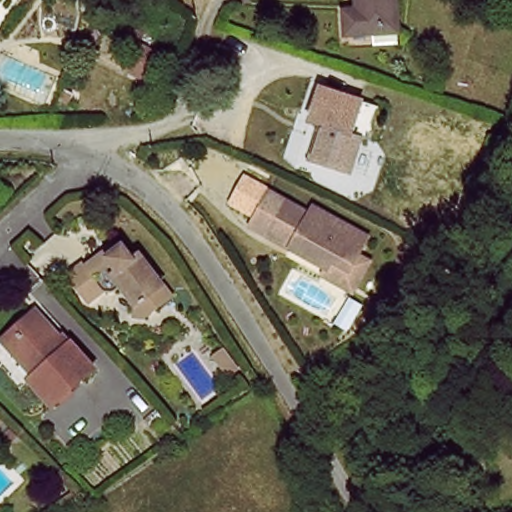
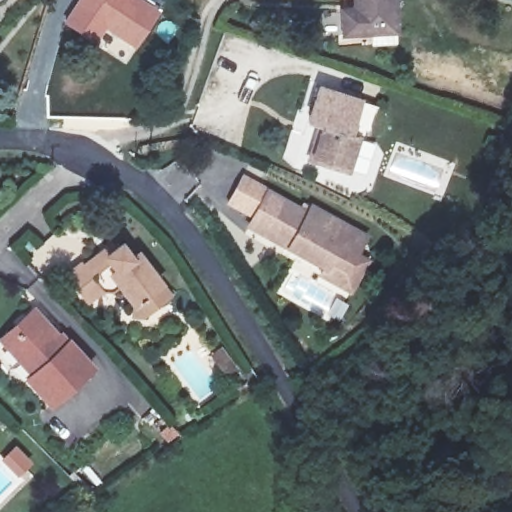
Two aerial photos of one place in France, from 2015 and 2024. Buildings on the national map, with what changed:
unchanged [(0,1),(0,0),(1,0),(0,1)]
new [(77,0),(145,0),(161,10),(136,49),(106,31),(95,46),(62,22),(77,0)]
unchanged [(407,33),(357,42),(352,19),(366,14),(363,0),(400,0),(407,33)]
unchanged [(360,112),(350,141),(359,142),(345,179),(306,165),(316,135),(300,129),(313,95),(360,112)]
new [(254,217),(228,202),(245,175),(272,191),(271,192),(270,192),(254,217)]
unchanged [(353,294),(324,276),(327,271),(292,249),(254,226),(257,220),(274,192),(312,215),(316,208),(370,241),(360,257),(372,263),(353,294)]
unchanged [(131,310),(117,291),(113,294),(98,293),(85,305),(66,278),(80,267),(109,244),(116,252),(127,266),(136,260),(170,300),(154,312),(140,322),(131,310)]
unchanged [(65,350),(71,344),(93,372),(48,411),(26,383),(0,350),(0,340),(15,329),(36,313),(65,350)]

